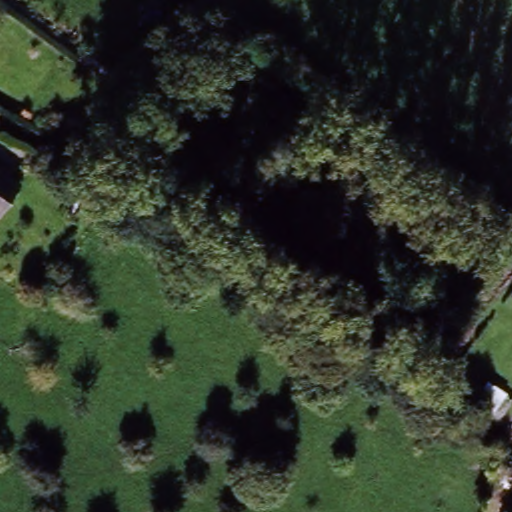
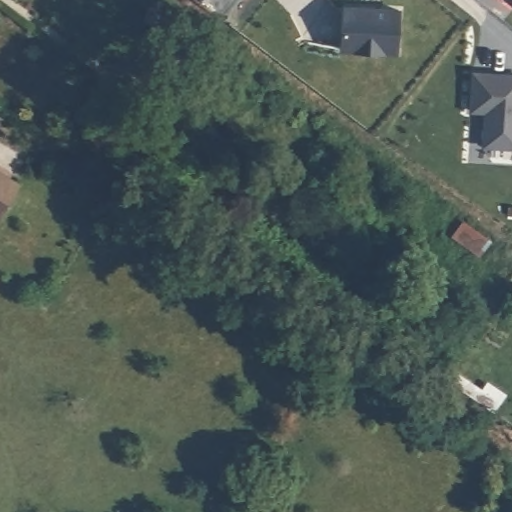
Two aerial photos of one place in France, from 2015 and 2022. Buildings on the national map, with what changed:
new [(505,0),(512,0),(512,4),(511,5),(505,0)]
new [(344,15),(400,17),(397,59),(342,57),(344,15)]
demolished [(323,67),(315,80),(288,57),(297,45),(312,22),(327,32),(342,44),(323,67)]
new [(481,148),(484,114),(470,113),(473,72),(512,74),(512,149),(481,148)]
unchanged [(0,213),(0,180),(17,194),(0,213)]
new [(463,222),(490,242),(480,257),(453,237),(463,222)]

